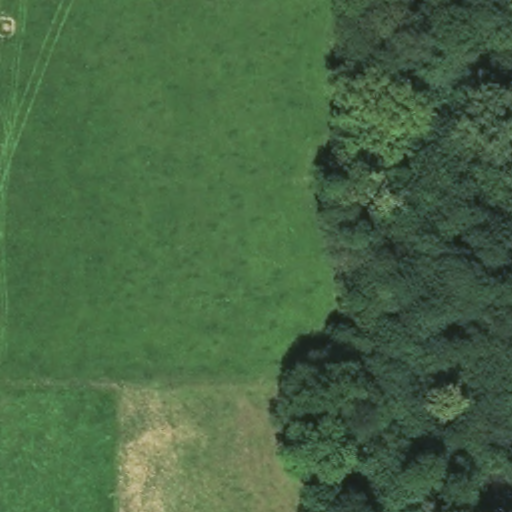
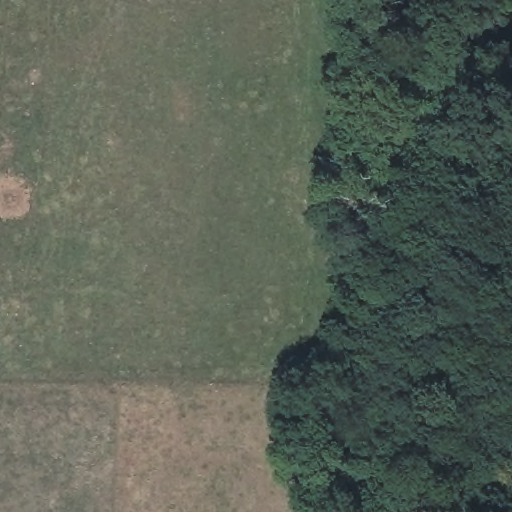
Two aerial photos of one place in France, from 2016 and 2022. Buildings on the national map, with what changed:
[]

